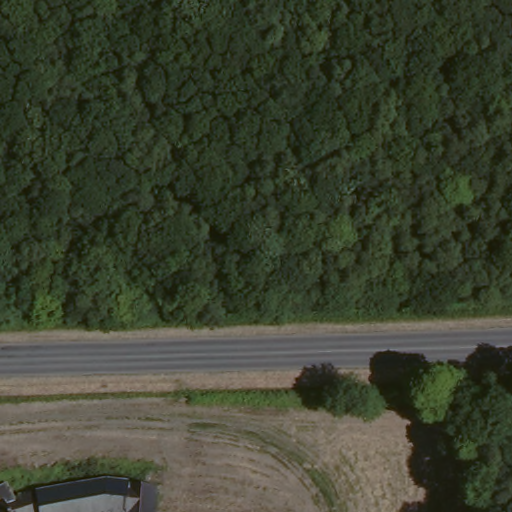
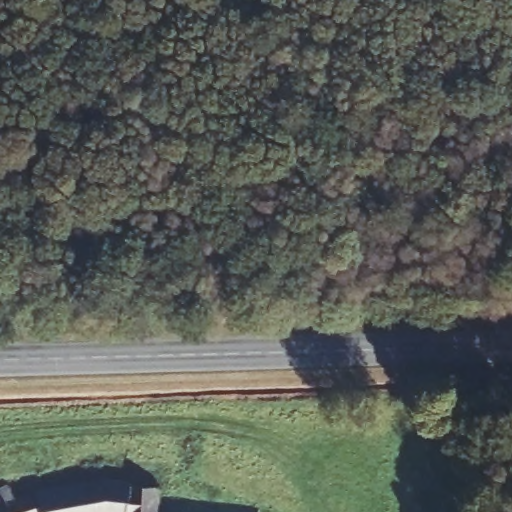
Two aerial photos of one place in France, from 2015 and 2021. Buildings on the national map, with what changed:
unchanged [(18,499),(114,483),(165,488),(160,512),(0,512),(0,491),(9,486),(18,499)]

